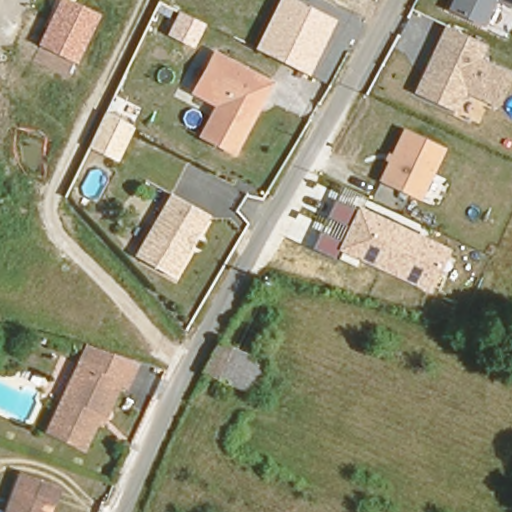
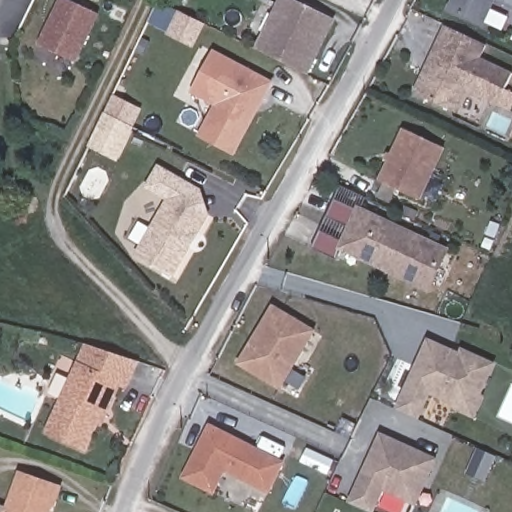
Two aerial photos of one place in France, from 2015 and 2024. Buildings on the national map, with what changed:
unchanged [(36,45),(59,0),(73,0),(101,15),(76,65),(36,45)]
unchanged [(256,47),(278,0),(298,0),(338,20),(308,75),(256,47)]
unchanged [(512,0),(512,7),(497,1),(486,25),(449,8),(452,0),(512,0)]
unchanged [(194,48),(166,34),(173,20),(156,12),(160,3),(206,26),(194,48)]
unchanged [(445,25),(488,43),(481,57),(512,70),(512,75),(498,106),(468,93),(459,112),(414,92),(445,25)]
unchanged [(272,80),(234,153),(199,137),(213,107),(194,95),(214,49),(272,80)]
unchanged [(118,162),(89,149),(106,113),(136,128),(118,162)]
unchanged [(405,129),(446,148),(422,200),(382,181),(405,129)]
unchanged [(133,249),(170,192),(205,215),(166,275),(149,263),(142,260),(133,249)]
unchanged [(432,292),(342,252),(337,262),(313,251),(321,231),(341,240),(347,225),(327,215),(337,196),(359,207),(451,250),(432,292)]
new [(313,331),(279,389),(238,365),(272,307),(313,331)]
demolished [(217,341),(264,361),(250,394),(202,372),(217,341)]
new [(489,363),(475,394),(462,388),(454,404),(427,390),(414,418),(397,410),(428,341),(460,355),(462,350),(489,363)]
unchanged [(95,424),(83,450),(46,432),(88,345),(138,362),(126,387),(120,384),(105,416),(100,426),(95,424)]
new [(470,416),(452,407),(462,388),(475,395),(480,397),(470,416)]
new [(283,464),(268,492),(224,470),(213,493),(185,479),(210,427),(283,464)]
new [(351,504),(383,436),(438,461),(417,505),(384,490),(374,512),(369,512),(351,504)]
unchanged [(19,473),(58,487),(49,512),(5,512),(19,473)]

